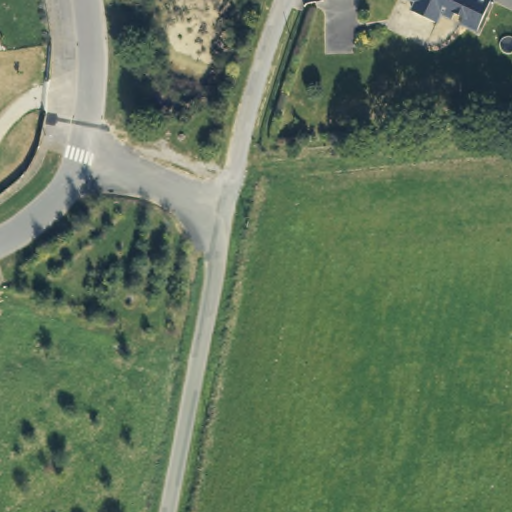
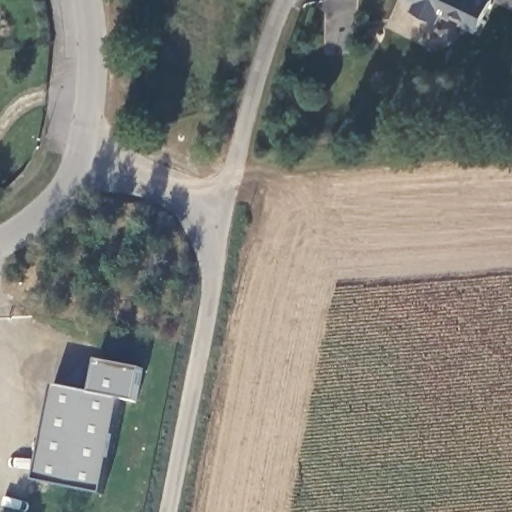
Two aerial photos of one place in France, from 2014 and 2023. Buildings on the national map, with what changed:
unchanged [(444,12),(442,15),(440,15),(440,17),(430,12),(425,21),(403,10),(407,1),(406,0),(481,0),(468,29),(449,20),(451,16),(444,12)]
new [(46,420),(54,385),(91,393),(97,360),(143,370),(136,403),(121,400),(102,495),(34,481),(46,420)]

